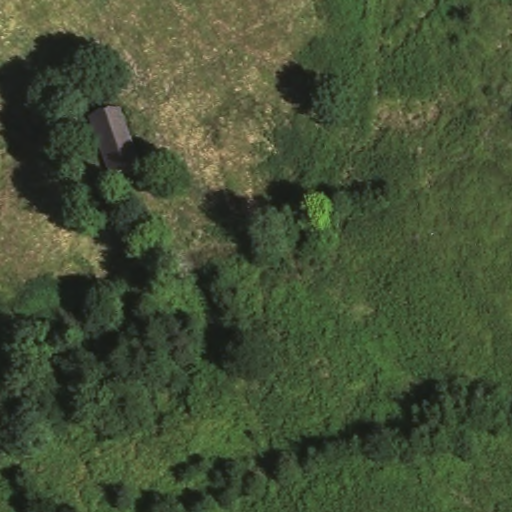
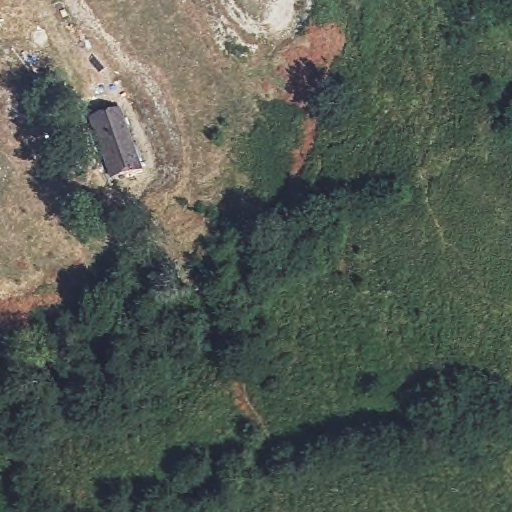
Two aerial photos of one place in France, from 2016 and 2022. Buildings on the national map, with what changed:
unchanged [(118,101),(142,167),(107,179),(85,113),(118,101)]

